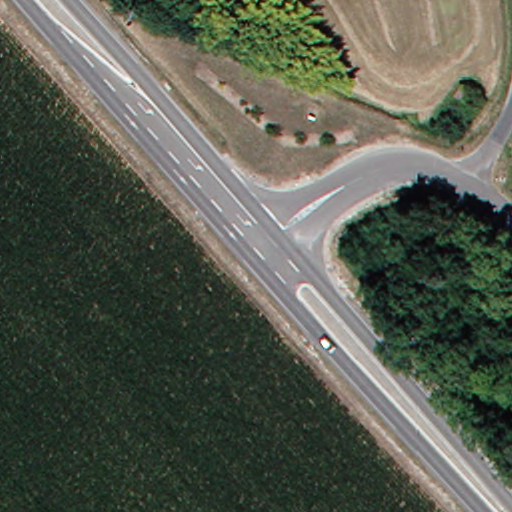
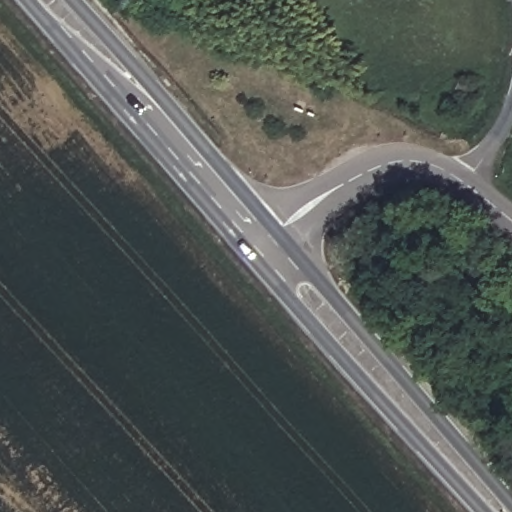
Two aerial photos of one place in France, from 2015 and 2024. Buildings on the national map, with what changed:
unchanged [(467,89),(463,98),(454,94),(458,85),(467,89)]

